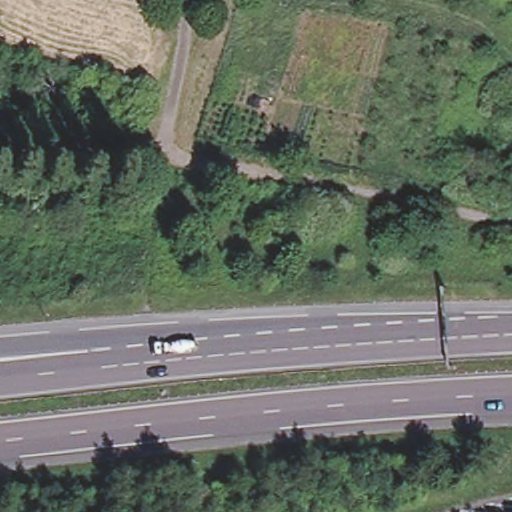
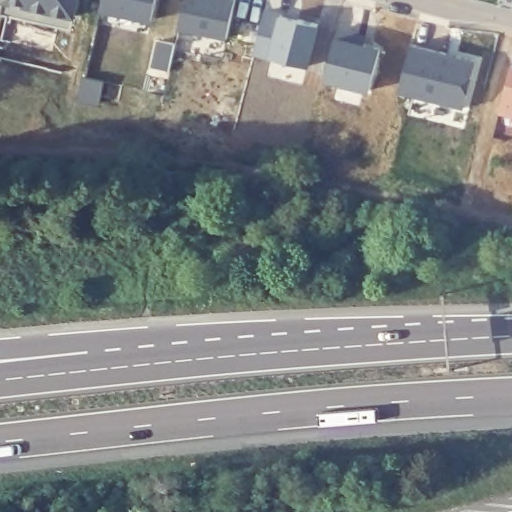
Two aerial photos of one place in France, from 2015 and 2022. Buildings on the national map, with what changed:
new [(0,5),(0,0),(78,0),(73,22),(0,5)]
new [(97,15),(101,0),(154,0),(149,27),(97,15)]
new [(238,0),(228,40),(182,29),(188,0),(238,0)]
new [(318,29),(307,72),(252,57),(263,15),(318,29)]
new [(377,52),(365,95),(320,85),(332,41),(377,52)]
new [(472,64),(461,111),(397,95),(408,49),(472,64)]
new [(512,66),(512,119),(496,114),(510,66),(512,66)]

